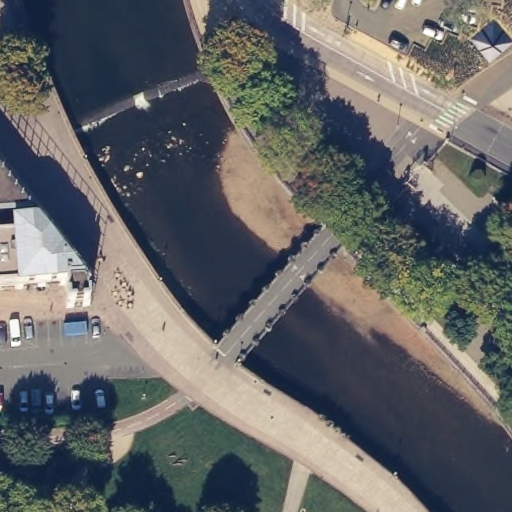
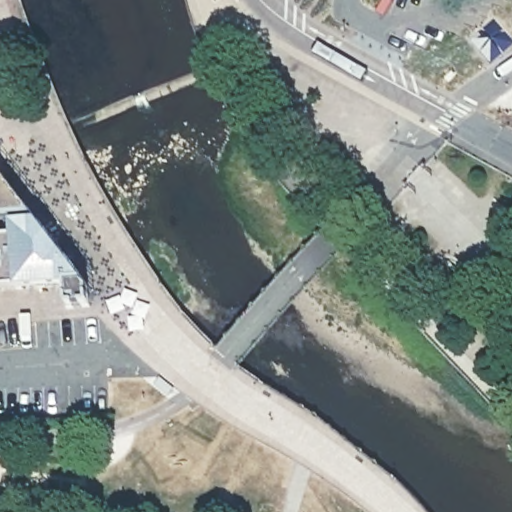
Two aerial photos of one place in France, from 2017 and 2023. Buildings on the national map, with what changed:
unchanged [(90,306),(67,308),(65,285),(0,290),(0,174),(52,240),(59,239),(60,250),(65,257),(72,256),(73,267),(88,287),(90,306)]

